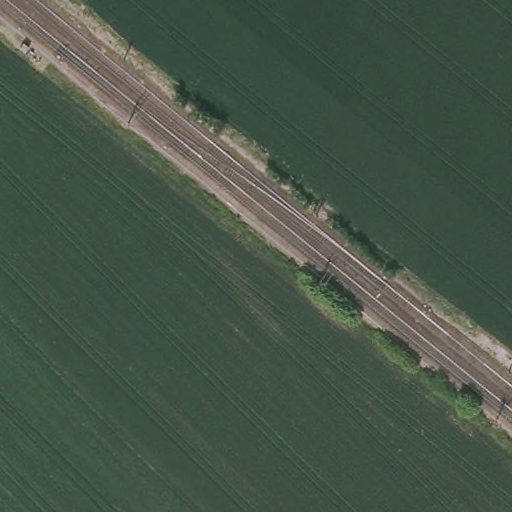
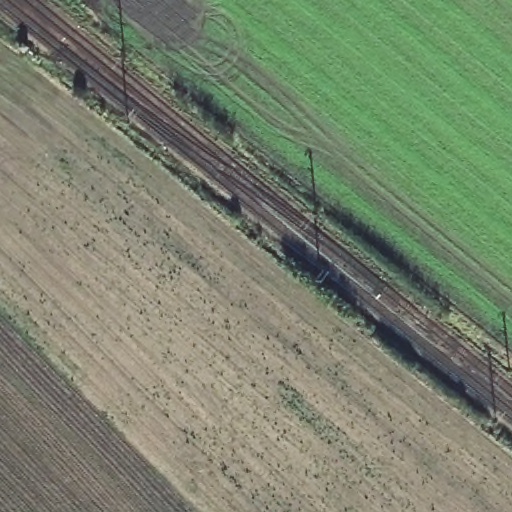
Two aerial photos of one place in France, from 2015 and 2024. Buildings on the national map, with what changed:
[]

